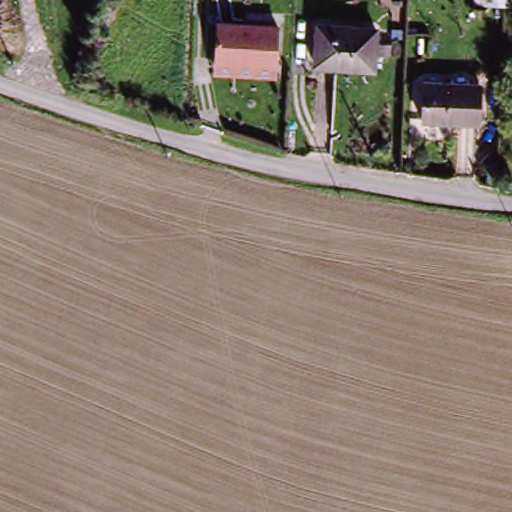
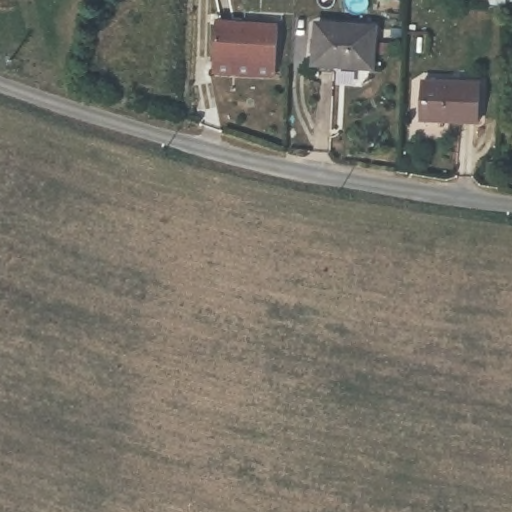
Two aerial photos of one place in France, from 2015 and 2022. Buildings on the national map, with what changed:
unchanged [(509,6),(509,0),(512,0),(512,7),(509,6)]
unchanged [(280,30),(275,71),(216,66),(220,25),(280,30)]
unchanged [(379,32),(375,75),(317,70),(320,27),(379,32)]
unchanged [(485,89),(481,125),(425,120),(427,84),(485,89)]

